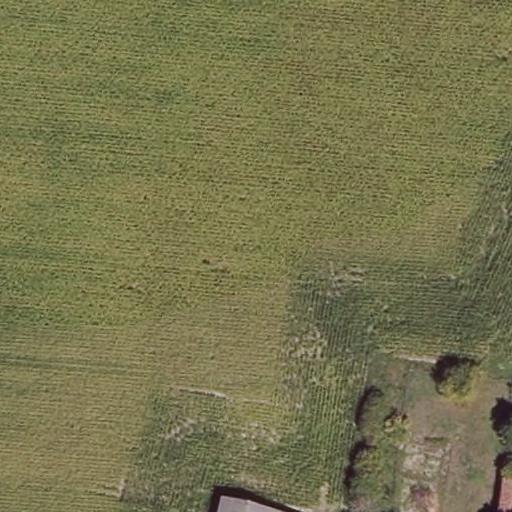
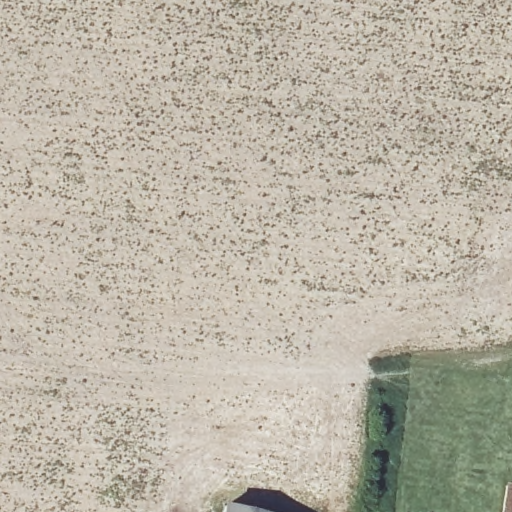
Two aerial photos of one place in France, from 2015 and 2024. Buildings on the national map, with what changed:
unchanged [(512,485),(512,512),(496,512),(501,484),(512,485)]

